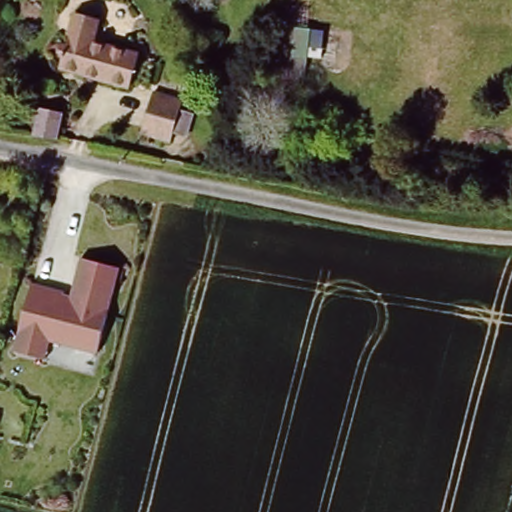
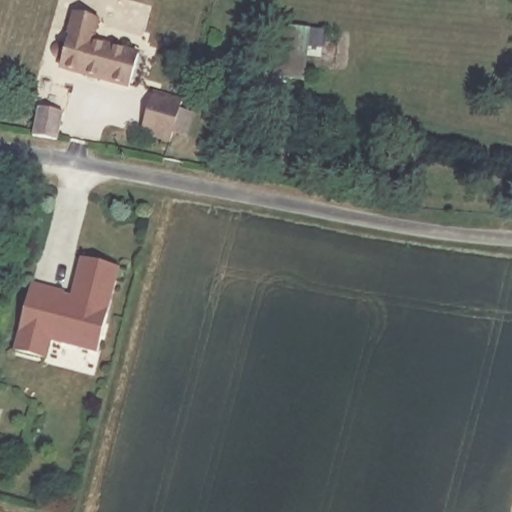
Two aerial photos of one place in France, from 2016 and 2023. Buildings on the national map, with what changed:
unchanged [(136,88),(71,70),(73,63),(58,59),(63,42),(69,21),(77,23),(80,14),(84,15),(103,21),(97,43),(98,44),(107,46),(141,55),(145,56),(136,88)]
unchanged [(321,50),(307,48),(305,77),(277,75),(280,44),(272,43),(272,24),(323,28),(321,50)]
unchanged [(70,84),(61,140),(39,136),(48,80),(70,84)]
unchanged [(137,132),(145,91),(175,98),(172,108),(175,108),(182,110),(177,133),(166,131),(165,138),(137,132)]
unchanged [(82,256),(121,266),(98,352),(50,340),(45,357),(15,350),(33,283),(72,295),(82,256)]

